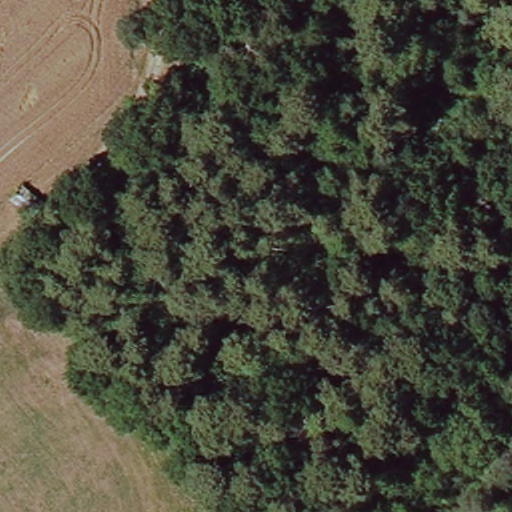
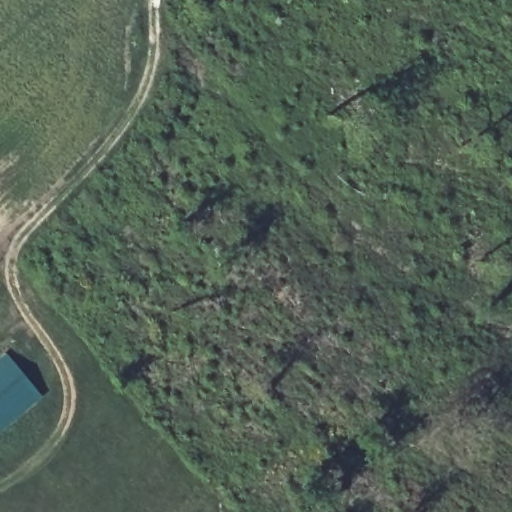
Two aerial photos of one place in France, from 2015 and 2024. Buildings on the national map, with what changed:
demolished [(21,191),(43,207),(31,221),(9,206),(21,191)]
new [(39,398),(0,430),(0,357),(3,355),(39,398)]

